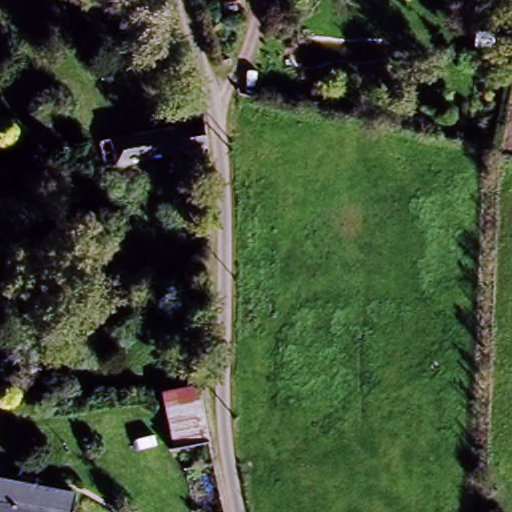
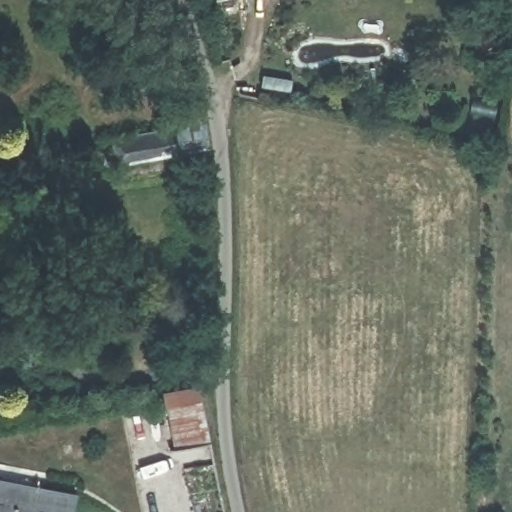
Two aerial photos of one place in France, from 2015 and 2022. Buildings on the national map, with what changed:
unchanged [(161,141),(161,125),(191,125),(191,162),(103,161),(103,139),(161,141)]
unchanged [(194,386),(208,442),(166,453),(156,395),(194,386)]
unchanged [(0,471),(71,483),(70,512),(0,512),(0,471)]

